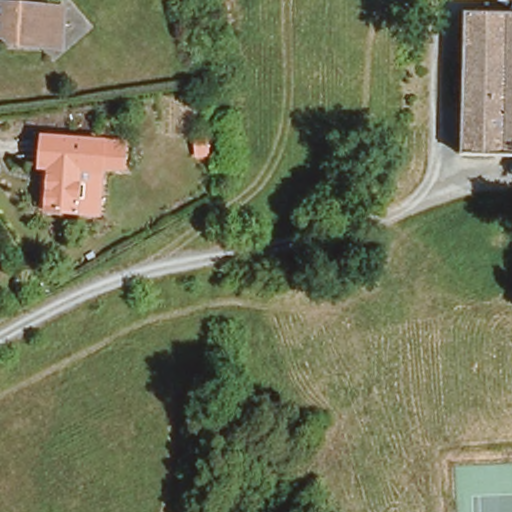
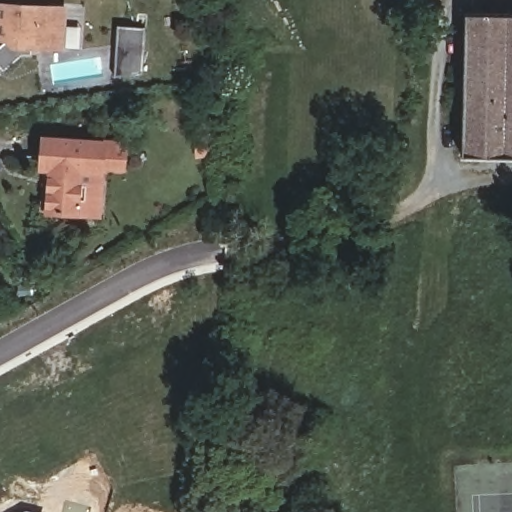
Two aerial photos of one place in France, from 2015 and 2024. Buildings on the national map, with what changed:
unchanged [(18,44),(18,37),(0,35),(0,22),(1,8),(53,10),(54,10),(69,12),(68,24),(68,31),(66,49),(41,47),(18,44)]
unchanged [(512,14),(512,156),(501,155),(460,154),(466,13),(512,14)]
new [(121,28),(144,30),(140,70),(117,73),(121,28)]
unchanged [(124,144),(124,173),(102,172),(100,214),(79,213),(51,212),(53,170),(41,169),(41,158),(43,141),(124,144)]
new [(30,512),(24,512),(25,511),(30,512)]

